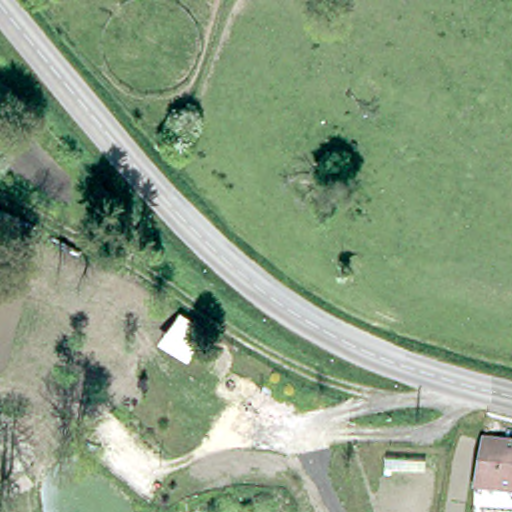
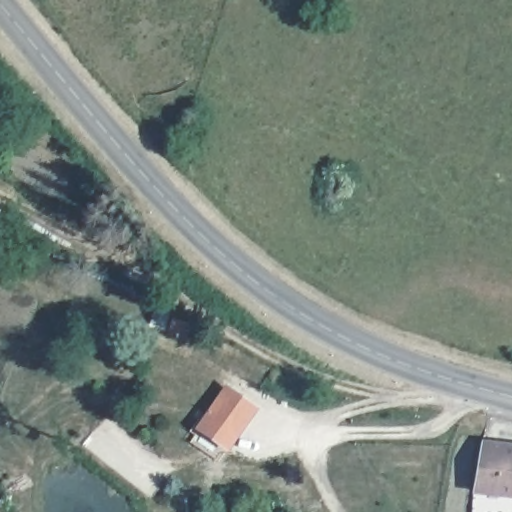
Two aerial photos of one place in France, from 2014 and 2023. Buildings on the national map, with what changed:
new [(228,451),(195,430),(225,385),(259,407),(228,451)]
unchanged [(472,494),(475,447),(510,449),(512,449),(512,512),(470,512),(472,494)]

